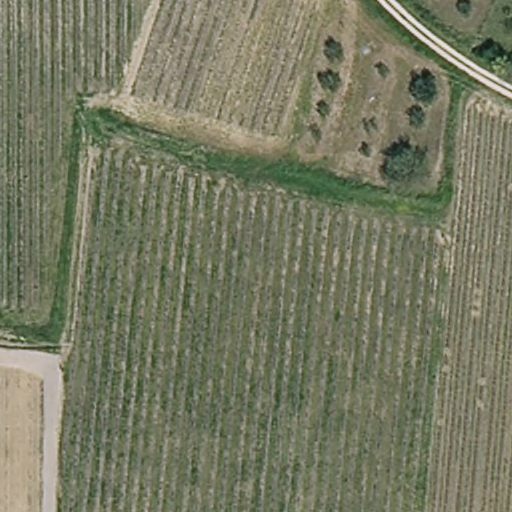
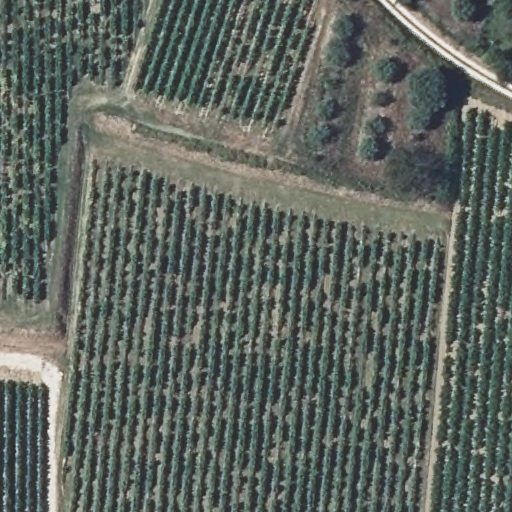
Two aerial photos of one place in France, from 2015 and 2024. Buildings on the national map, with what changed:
[]

